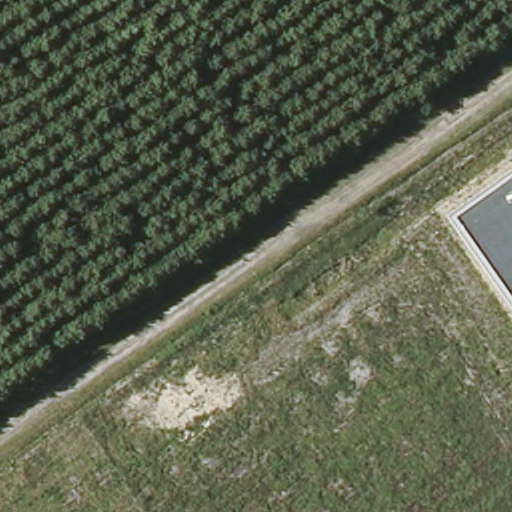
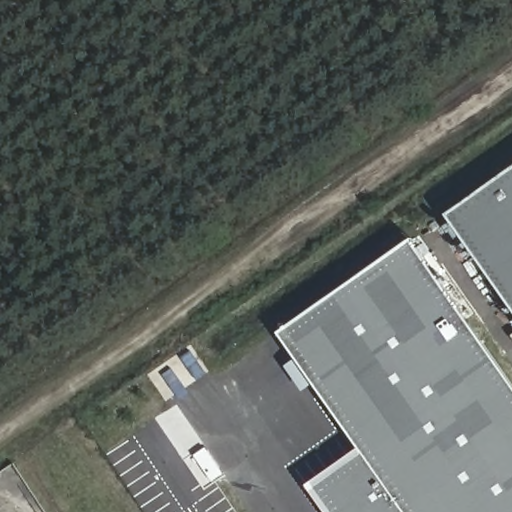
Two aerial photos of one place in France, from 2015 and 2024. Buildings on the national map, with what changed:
unchanged [(512,171),(512,312),(446,217),(512,171)]
new [(512,512),(332,512),(312,484),(360,451),(278,331),(411,246),(512,386),(512,512)]

